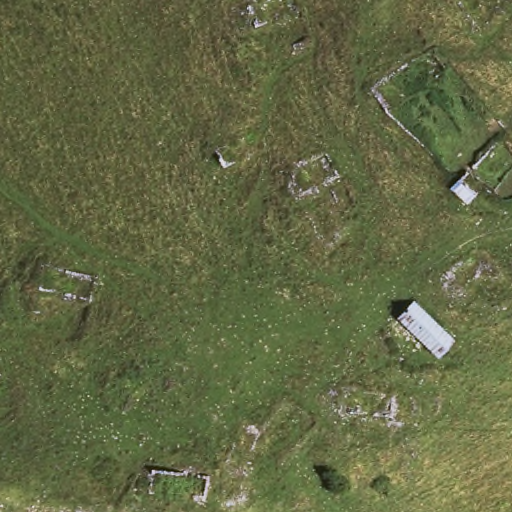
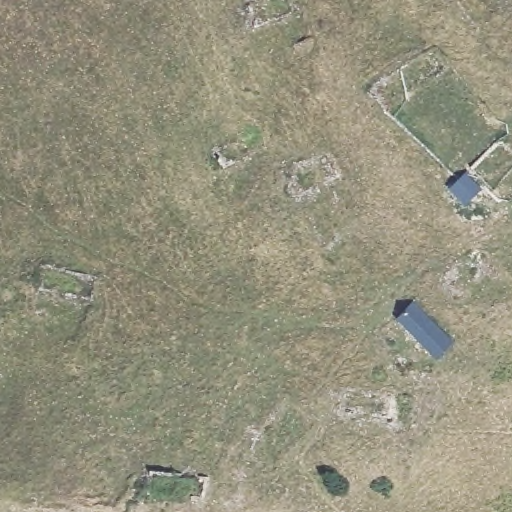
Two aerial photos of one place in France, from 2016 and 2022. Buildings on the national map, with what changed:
unchanged [(468,210),(458,199),(449,191),(468,172),(487,192),(468,210)]
unchanged [(461,341),(440,364),(418,344),(399,327),(420,303),(461,341)]

